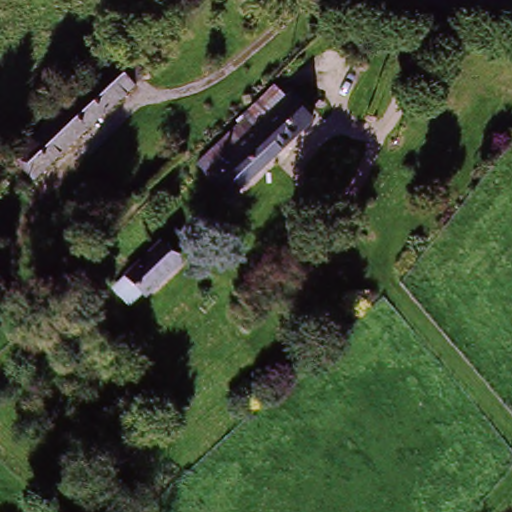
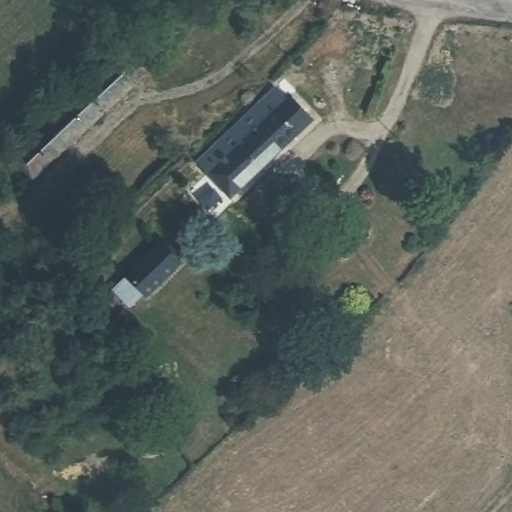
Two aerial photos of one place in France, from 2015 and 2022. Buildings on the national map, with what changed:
unchanged [(115,58),(135,76),(31,183),(10,160),(115,58)]
unchanged [(198,164),(239,126),(250,135),(261,124),(252,112),(275,91),(284,101),(292,98),(312,121),(231,199),(198,164)]
unchanged [(163,237),(181,259),(150,288),(133,303),(113,280),(129,266),(163,237)]

